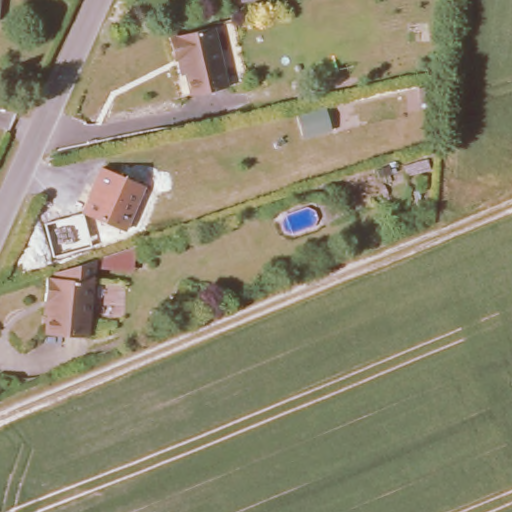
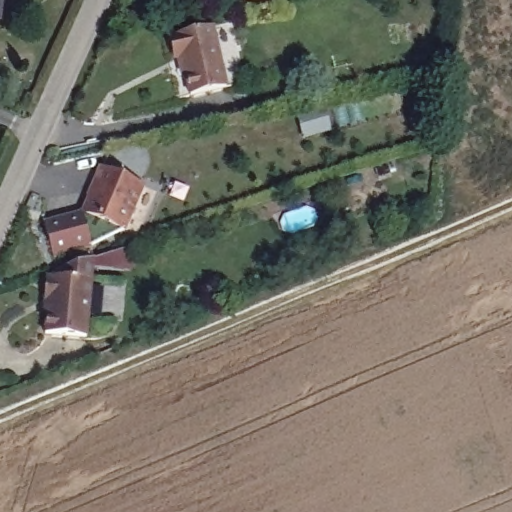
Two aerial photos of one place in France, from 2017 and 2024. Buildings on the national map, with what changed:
unchanged [(239,0),(261,0),(240,4),(239,0)]
unchanged [(182,64),(180,65),(174,40),(216,30),(231,89),(191,100),(182,64)]
unchanged [(105,170),(148,189),(127,236),(85,215),(105,170)]
unchanged [(81,211),(93,246),(54,258),(43,222),(81,211)]
unchanged [(41,331),(54,298),(50,297),(61,269),(64,266),(112,250),(101,281),(77,344),(41,331)]

